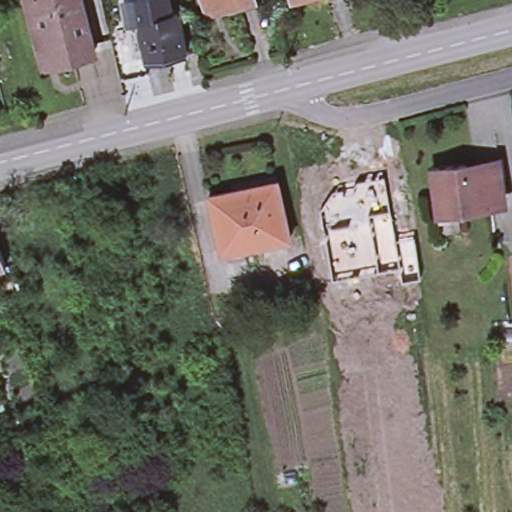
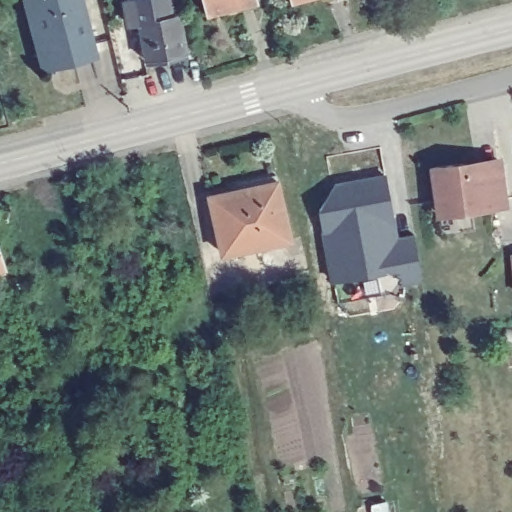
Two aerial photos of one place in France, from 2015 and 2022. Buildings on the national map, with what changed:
unchanged [(43,64),(27,0),(82,0),(94,50),(43,64)]
unchanged [(201,0),(252,0),(204,12),(201,0)]
unchanged [(144,59),(136,19),(174,10),(183,50),(144,59)]
unchanged [(106,21),(120,17),(130,61),(117,64),(106,21)]
unchanged [(490,205),(491,210),(469,212),(464,166),(469,166),(499,162),(502,175),(504,204),(490,205)]
unchanged [(439,204),(435,170),(464,166),(469,212),(459,214),(440,217),(439,204)]
new [(328,189),(338,187),(339,192),(349,190),(348,185),(352,180),(379,175),(390,239),(409,236),(414,277),(396,280),(394,265),(326,275),(314,207),(328,189)]
unchanged [(224,250),(211,193),(278,179),(290,235),(224,250)]
unchanged [(0,263),(0,255),(3,262),(0,263)]
unchanged [(512,291),(509,257),(512,257),(512,291)]

